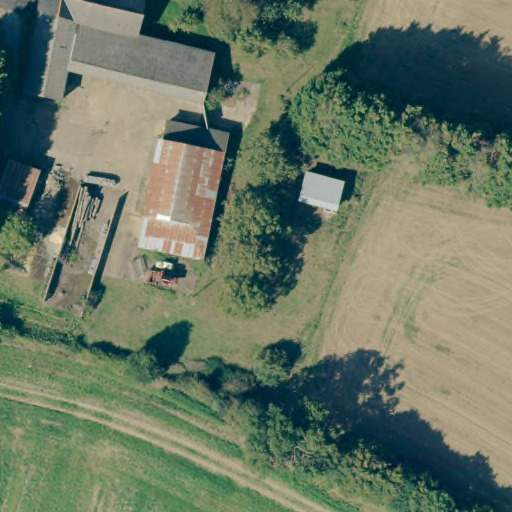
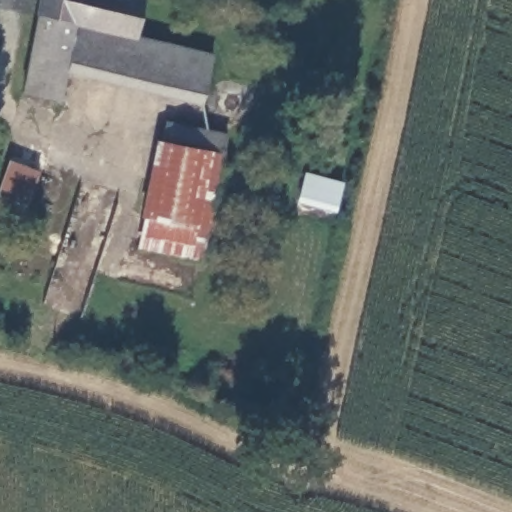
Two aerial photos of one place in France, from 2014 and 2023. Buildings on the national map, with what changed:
unchanged [(141,0),(130,36),(71,20),(43,12),(33,10),(35,0),(141,0)]
unchanged [(54,97),(15,87),(33,10),(43,12),(71,20),(63,58),(54,97)]
unchanged [(63,58),(71,20),(130,36),(185,50),(207,55),(198,91),(160,82),(63,58)]
unchanged [(160,141),(165,120),(195,127),(224,135),(219,155),(193,149),(160,141)]
unchanged [(144,212),(137,211),(148,167),(150,155),(154,140),(160,141),(193,149),(219,155),(205,223),(199,254),(145,242),(139,241),(144,212)]
unchanged [(0,209),(0,176),(6,157),(34,166),(18,215),(0,209)]
unchanged [(339,172),(335,198),(303,192),(308,165),(339,172)]

